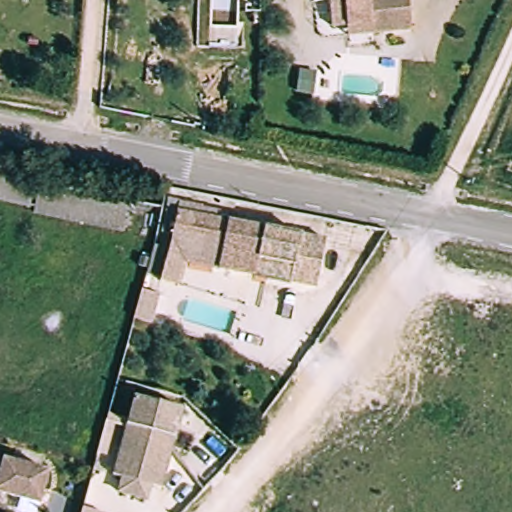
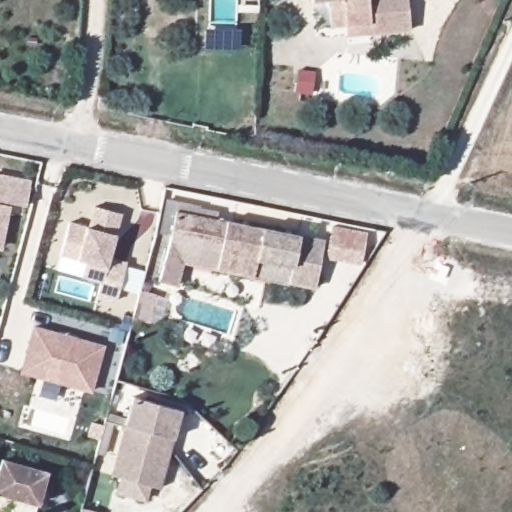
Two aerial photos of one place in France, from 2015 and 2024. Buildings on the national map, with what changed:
unchanged [(343,21),(325,22),(325,0),(407,0),(408,33),(365,35),(343,35),(343,21)]
unchanged [(0,193),(0,171),(31,179),(26,199),(0,193)]
unchanged [(223,268),(185,261),(179,284),(162,279),(183,202),(205,207),(205,208),(223,212),(221,219),(328,242),(318,290),(292,283),(257,276),(223,268)]
new [(0,250),(0,204),(11,207),(1,250),(0,250)]
new [(84,263),(77,261),(61,257),(71,222),(86,227),(94,207),(122,216),(117,236),(111,258),(129,264),(119,302),(97,297),(101,282),(81,278),(84,263)]
unchanged [(144,287),(154,290),(161,292),(153,320),(146,318),(137,316),(136,316),(144,287)]
new [(34,326),(106,346),(92,395),(20,375),(34,326)]
unchanged [(121,485),(111,482),(135,393),(183,407),(159,496),(148,492),(144,507),(117,500),(121,485)]
unchanged [(41,506),(0,497),(0,481),(4,463),(49,473),(41,506)]

